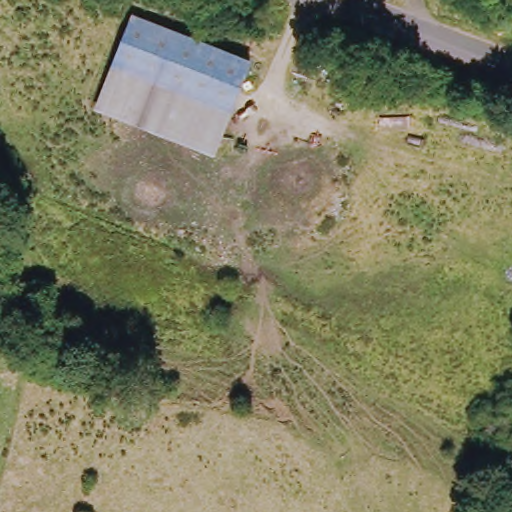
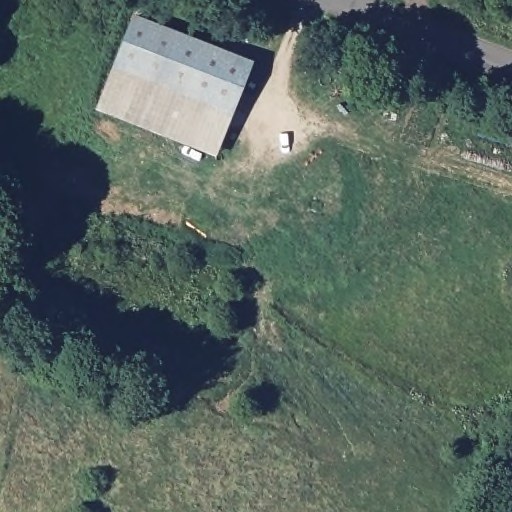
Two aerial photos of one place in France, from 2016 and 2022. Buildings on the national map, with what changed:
unchanged [(134,15),(253,61),(217,158),(97,112),(134,15)]

